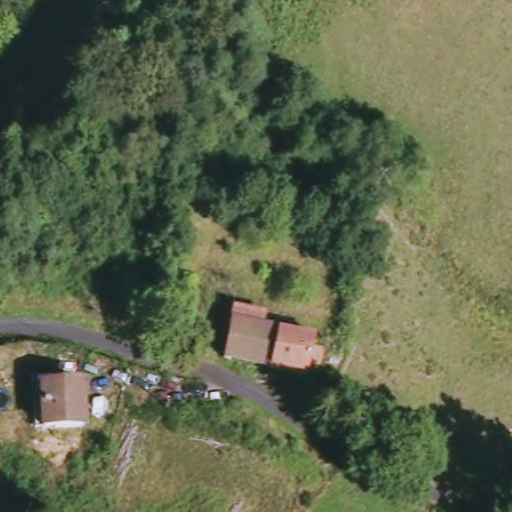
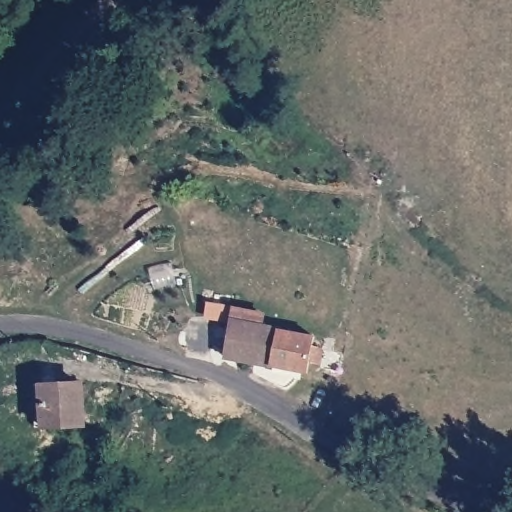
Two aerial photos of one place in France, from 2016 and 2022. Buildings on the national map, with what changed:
unchanged [(238,324),(313,337),(306,374),(233,365),(238,324)]
unchanged [(36,388),(87,384),(91,427),(39,430),(36,388)]

